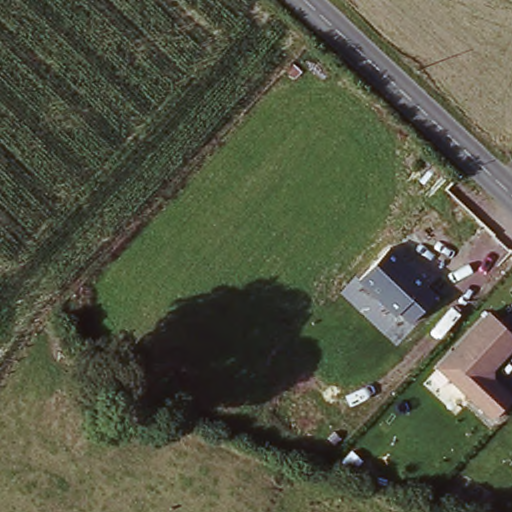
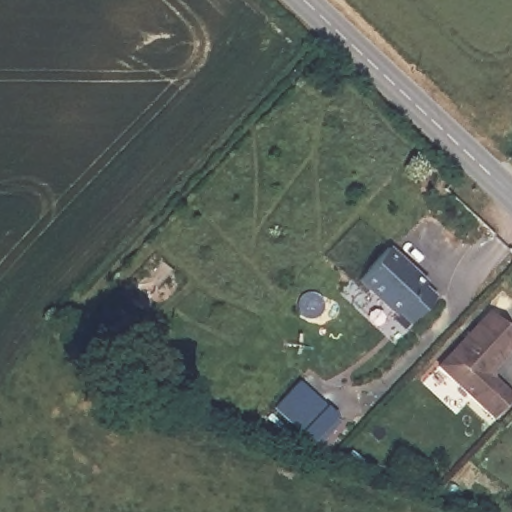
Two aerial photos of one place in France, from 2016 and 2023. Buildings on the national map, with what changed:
unchanged [(411,323),(399,312),(395,317),(356,278),(387,245),(427,281),(422,286),(435,297),(411,323)]
unchanged [(491,367),(492,381),(512,398),(512,399),(493,420),(435,366),(488,310),(512,333),(512,345),(491,367)]
new [(327,407),(336,417),(311,443),(302,434),(275,408),(299,382),(327,407)]

